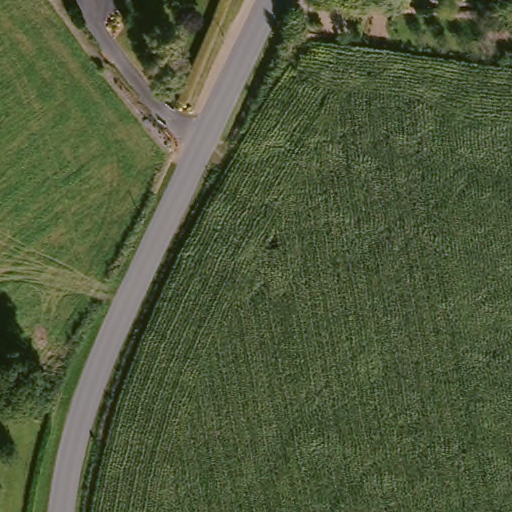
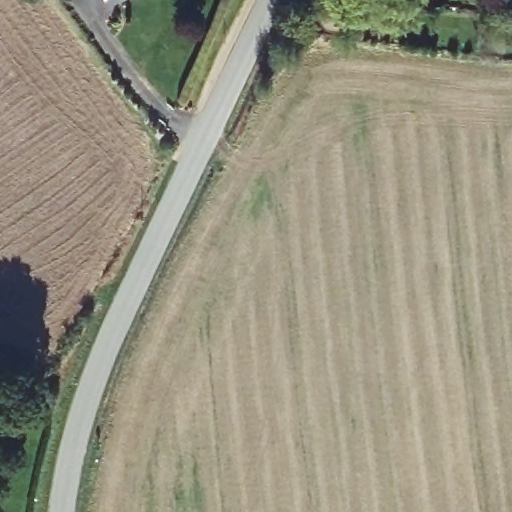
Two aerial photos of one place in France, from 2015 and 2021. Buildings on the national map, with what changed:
[]

